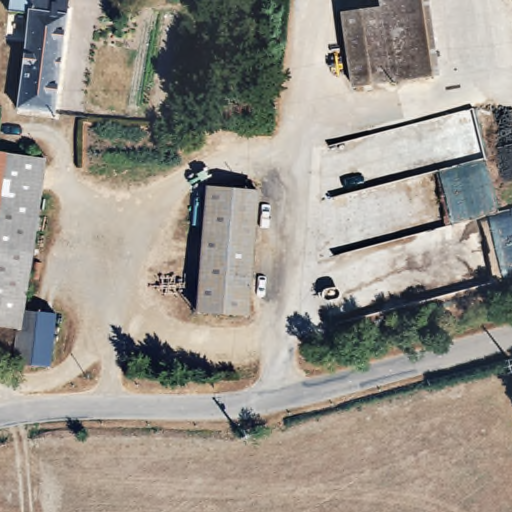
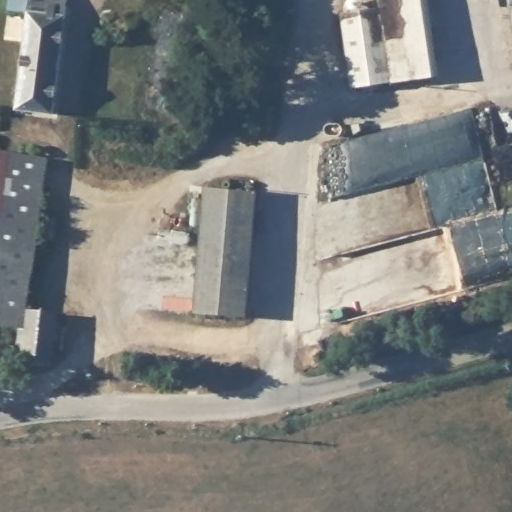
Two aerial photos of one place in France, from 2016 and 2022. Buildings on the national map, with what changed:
unchanged [(15,112),(25,12),(17,12),(15,9),(12,5),(12,1),(13,0),(65,0),(53,116),(15,112)]
unchanged [(387,5),(386,0),(431,0),(443,76),(400,83),(387,5)]
unchanged [(387,5),(400,83),(351,89),(339,14),(387,5)]
unchanged [(21,312),(20,328),(15,328),(0,327),(0,155),(35,159),(21,312)]
unchanged [(263,191),(250,320),(193,317),(204,187),(263,191)]
unchanged [(55,315),(50,372),(11,368),(15,328),(20,328),(21,312),(55,315)]

